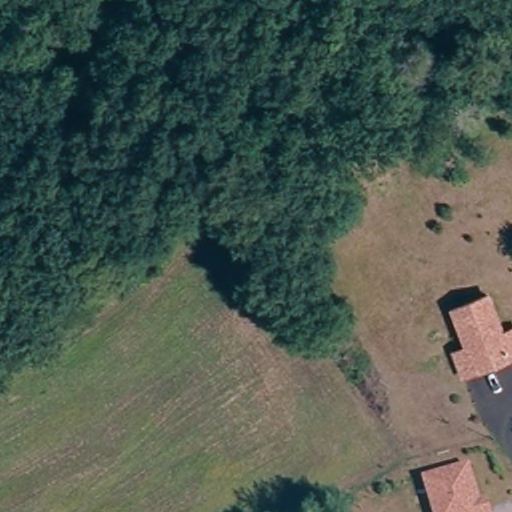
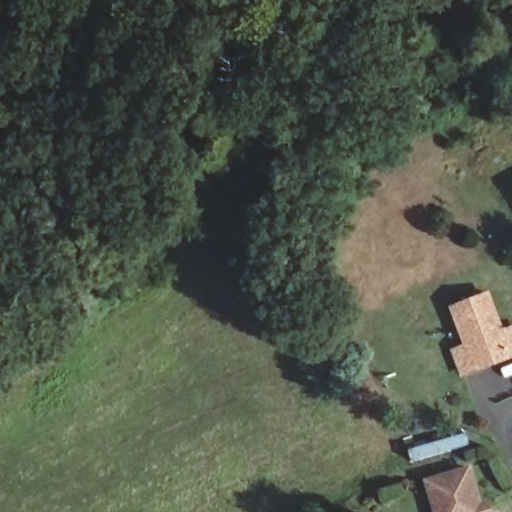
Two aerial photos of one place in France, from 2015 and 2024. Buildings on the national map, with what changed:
unchanged [(459,350),(471,345),(454,308),(488,292),(505,329),(512,326),(512,353),(469,373),(459,350)]
unchanged [(461,473),(480,512),(432,512),(422,491),(461,473)]

